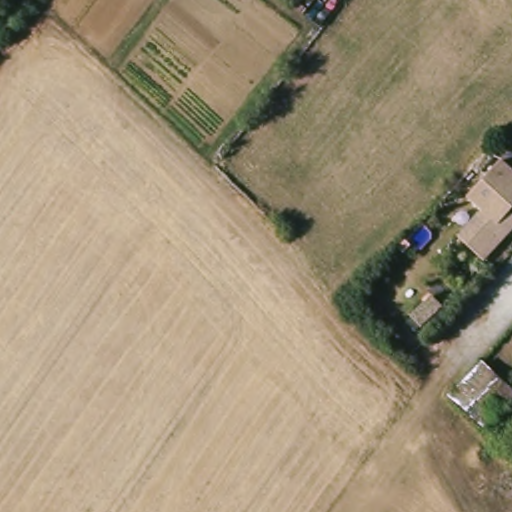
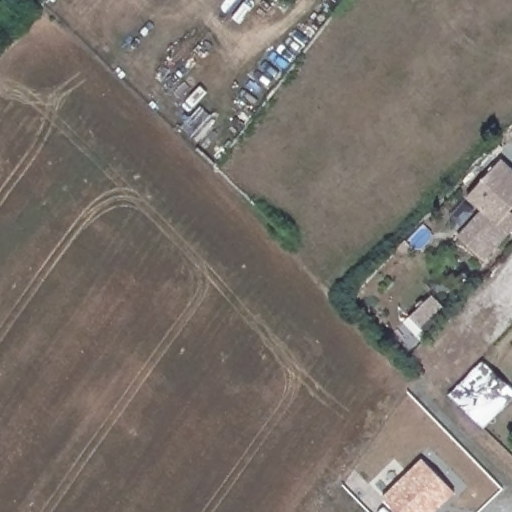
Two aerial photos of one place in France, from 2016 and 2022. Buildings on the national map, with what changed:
unchanged [(512,163),(512,233),(484,262),(454,236),(477,209),(464,198),(502,155),(512,163)]
unchanged [(450,397),(485,361),(512,388),(512,399),(485,431),(450,397)]
new [(422,458),(456,493),(437,512),(396,512),(382,498),(422,458)]

